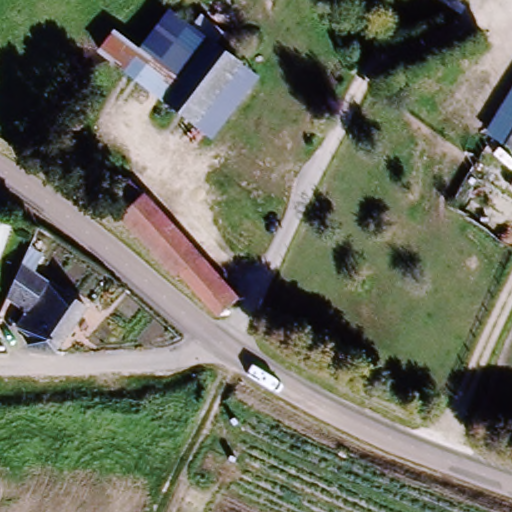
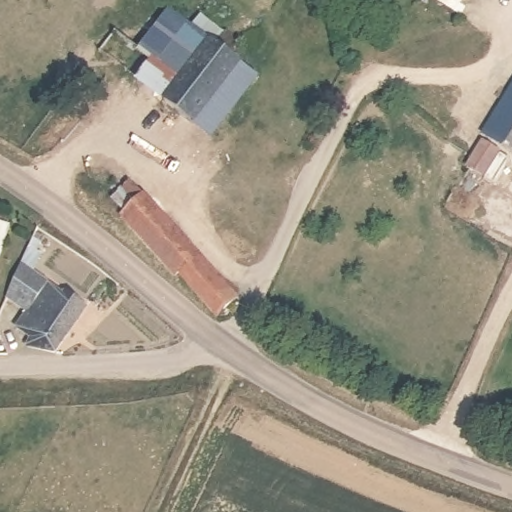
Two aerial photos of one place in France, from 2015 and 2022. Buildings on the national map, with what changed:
unchanged [(83,43),(116,0),(148,0),(220,55),(229,43),(245,55),(234,68),(245,76),(199,135),(91,51),(83,43)]
unchanged [(199,135),(245,76),(262,90),(216,148),(199,135)]
unchanged [(487,130),(512,95),(512,147),(487,130)]
unchanged [(215,312),(190,282),(183,273),(176,273),(121,211),(107,195),(130,175),(144,191),(208,267),(232,296),(215,312)]
unchanged [(35,337),(20,326),(32,308),(7,294),(27,251),(41,259),(32,272),(64,294),(35,337)]
unchanged [(53,352),(31,345),(35,337),(64,294),(85,307),(53,352)]

